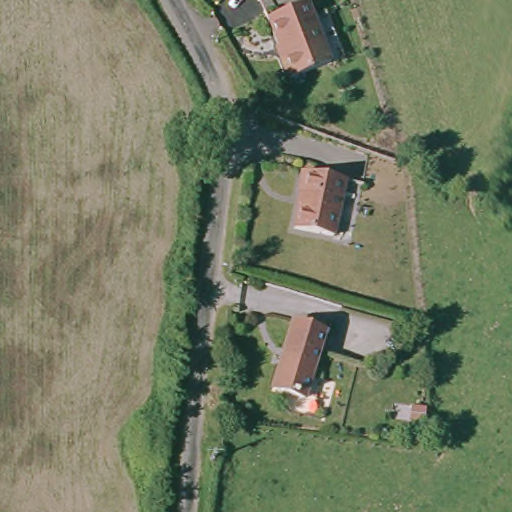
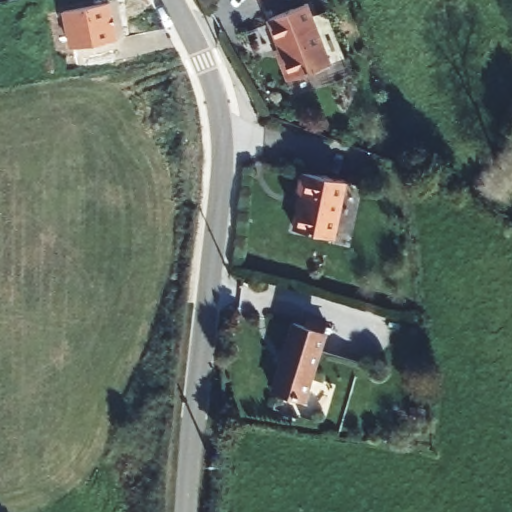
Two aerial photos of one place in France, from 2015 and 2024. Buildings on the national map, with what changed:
unchanged [(244,0),(254,0),(247,5),(244,0)]
unchanged [(329,64),(289,75),(269,9),(299,0),(308,0),(313,12),(329,64)]
new [(118,39),(68,49),(60,12),(110,2),(118,39)]
unchanged [(291,190),(295,169),(346,180),(336,241),(294,233),(301,192),(291,190)]
unchanged [(294,313),(331,325),(306,396),(270,383),(294,313)]

